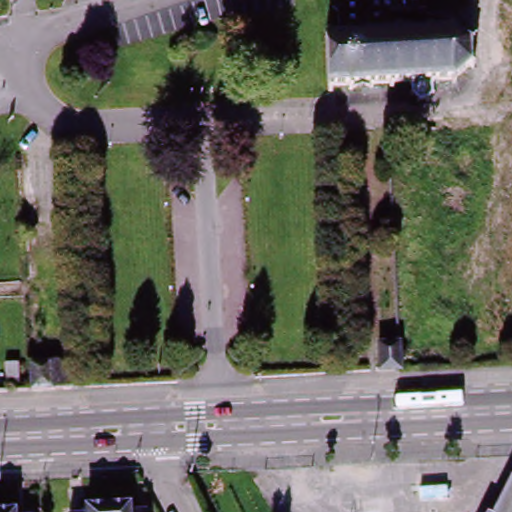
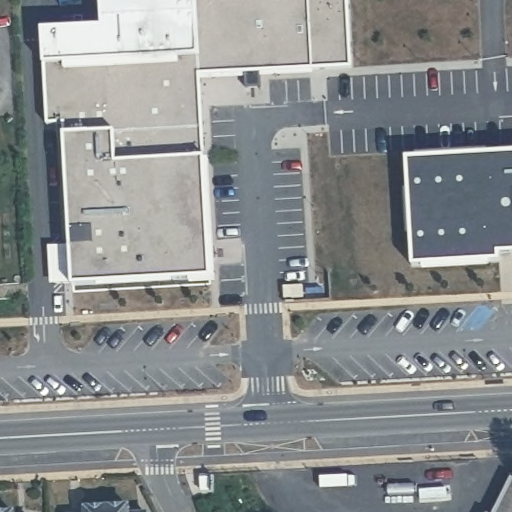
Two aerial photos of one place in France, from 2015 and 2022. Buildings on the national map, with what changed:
new [(209,156),(217,278),(72,284),(62,134),(60,122),(47,124),(44,65),(42,28),(102,25),(101,0),(351,0),(354,66),(202,75),(209,156)]
demolished [(334,0),(422,0),(422,20),(413,20),(385,22),(385,29),(385,37),(384,38),(369,39),(367,40),(365,35),(362,36),(361,40),(360,40),(345,40),(344,37),(341,37),(340,41),(337,41),(335,7),(334,0)]
demolished [(340,41),(341,37),(344,37),(345,40),(360,40),(361,40),(362,36),(365,35),(367,40),(369,39),(384,38),(385,37),(388,31),(390,30),(392,29),(393,29),(395,28),(396,29),(398,30),(399,30),(400,31),(402,37),(402,34),(405,33),(406,38),(421,37),(420,33),(425,33),(425,37),(442,36),(445,32),(447,34),(446,37),(460,44),(464,41),(467,45),(465,47),(465,66),(468,67),(466,70),(463,69),(447,81),(449,84),(446,86),(444,83),(427,84),(424,88),(424,96),(420,101),(412,102),(408,94),(408,88),(406,87),(405,85),(389,85),(389,90),(385,90),(385,85),(367,86),(367,90),(364,90),(363,86),(347,87),(347,90),(342,91),(342,87),(325,88),(325,87),(325,58),(324,44),(324,41),(337,41),(340,41)]
new [(500,258),(411,266),(405,156),(512,150),(512,251),(500,252),(500,258)]
demolished [(381,357),(380,357),(380,345),(400,343),(400,356),(381,357)]
demolished [(29,370),(32,370),(64,368),(65,390),(30,392),(29,370)]
demolished [(410,507),(406,475),(457,470),(458,504),(410,507)]
unchanged [(509,480),(512,482),(512,512),(492,512),(509,480)]
unchanged [(121,507),(121,512),(101,512),(100,508),(121,507)]
unchanged [(101,512),(79,512),(79,510),(100,508),(101,512)]

